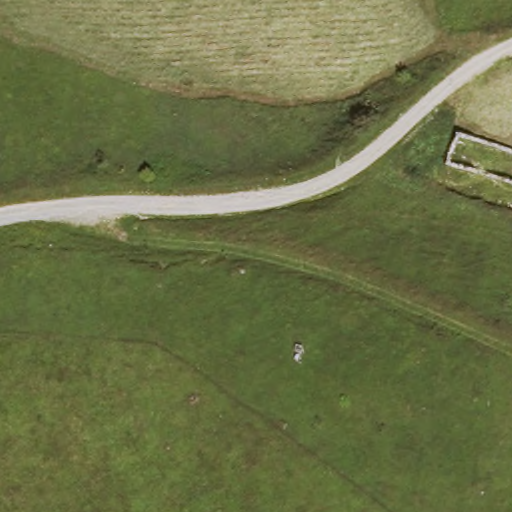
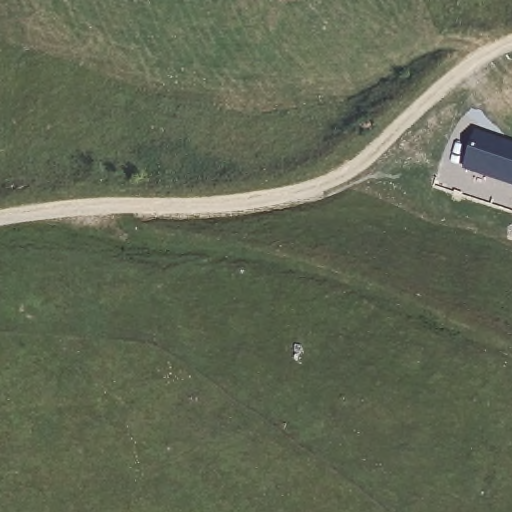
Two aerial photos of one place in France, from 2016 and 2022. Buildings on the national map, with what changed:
new [(512,185),(464,170),(476,131),(512,143),(512,185)]

